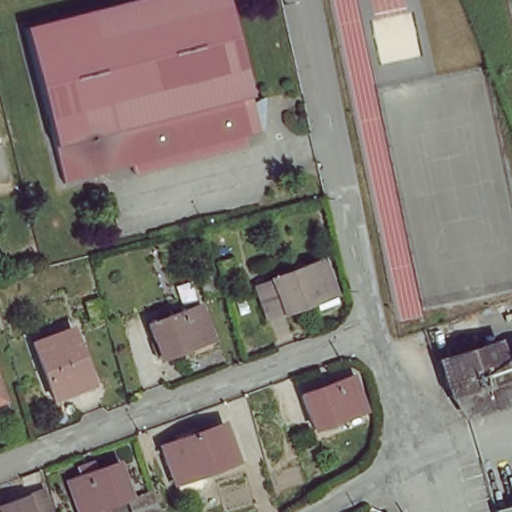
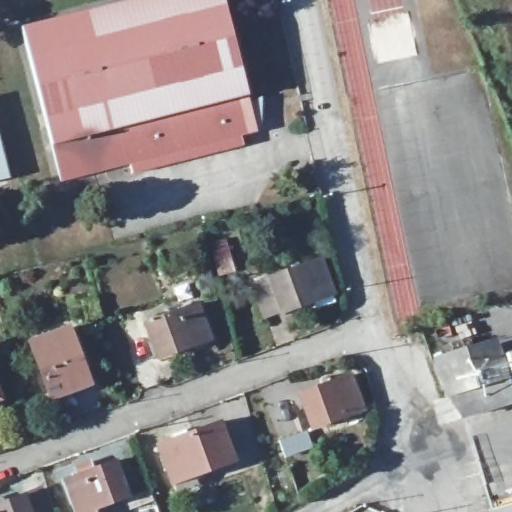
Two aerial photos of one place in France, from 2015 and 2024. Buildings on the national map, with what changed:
unchanged [(258,136),(62,184),(23,29),(145,0),(226,0),(258,136)]
new [(0,140),(10,178),(0,181),(0,140)]
unchanged [(259,289),(276,283),(325,264),(338,297),(288,316),(271,323),(259,289)]
unchanged [(209,339),(159,358),(146,324),(196,305),(209,339)]
unchanged [(95,389),(57,403),(37,349),(74,334),(95,389)]
unchanged [(510,407),(460,422),(452,398),(440,401),(430,366),(442,363),(439,352),(464,345),(467,354),(490,347),(510,407)]
unchanged [(512,357),(512,378),(504,380),(499,360),(512,357)]
unchanged [(368,404),(318,423),(306,390),(355,372),(368,404)]
unchanged [(221,424),(235,460),(174,483),(160,447),(221,424)]
unchanged [(318,434),(303,440),(298,429),(312,424),(318,434)]
unchanged [(101,507),(102,512),(77,512),(67,481),(81,476),(77,467),(92,461),(95,470),(115,463),(128,496),(101,507)]
unchanged [(0,512),(0,504),(33,491),(39,512),(0,512)]
unchanged [(131,512),(131,509),(154,502),(156,512),(131,512)]
unchanged [(496,512),(512,507),(512,512),(496,512)]

